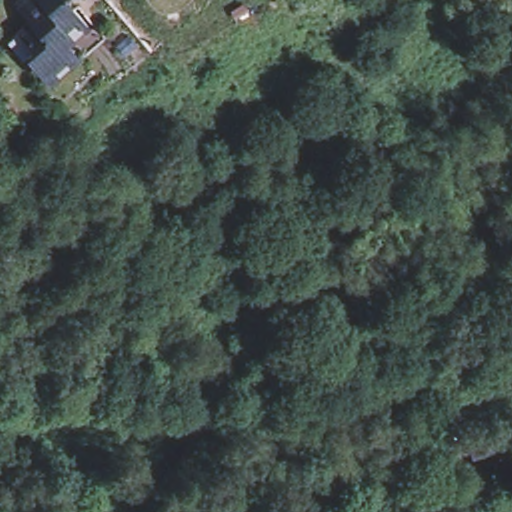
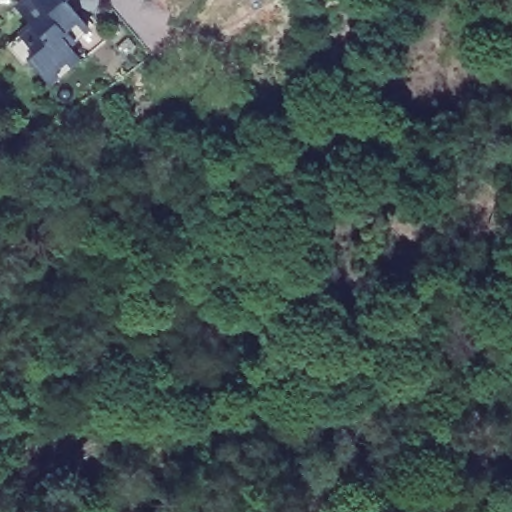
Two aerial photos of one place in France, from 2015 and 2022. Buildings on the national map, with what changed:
unchanged [(30,59),(25,64),(10,48),(35,28),(19,9),(30,0),(70,0),(65,4),(89,33),(94,28),(106,44),(82,64),(54,87),(47,79),(30,59)]

